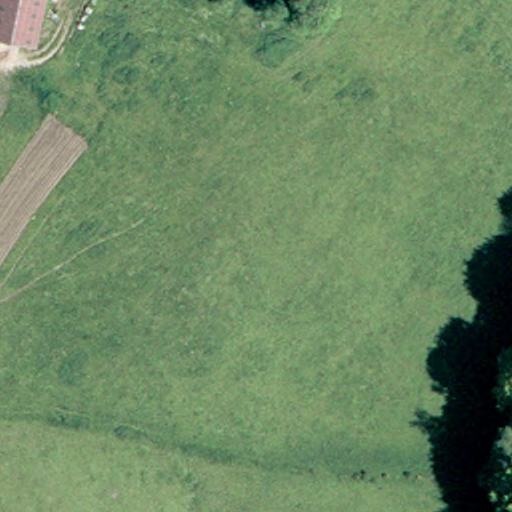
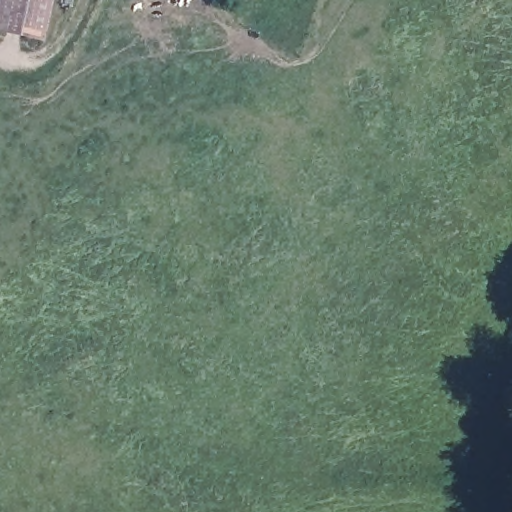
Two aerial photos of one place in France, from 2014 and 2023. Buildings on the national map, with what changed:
unchanged [(37,50),(0,41),(0,0),(38,0),(46,3),(37,50)]
unchanged [(46,3),(38,0),(47,0),(46,3)]

